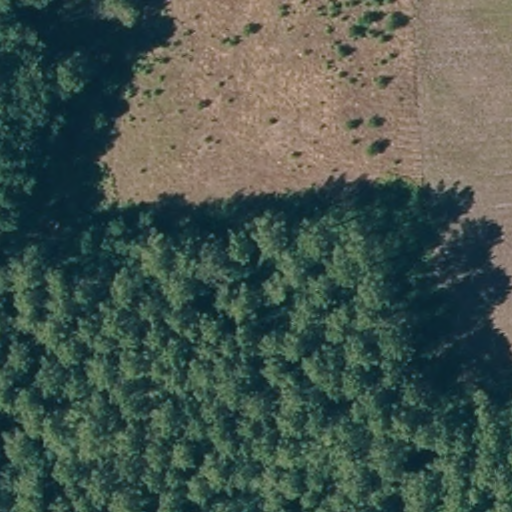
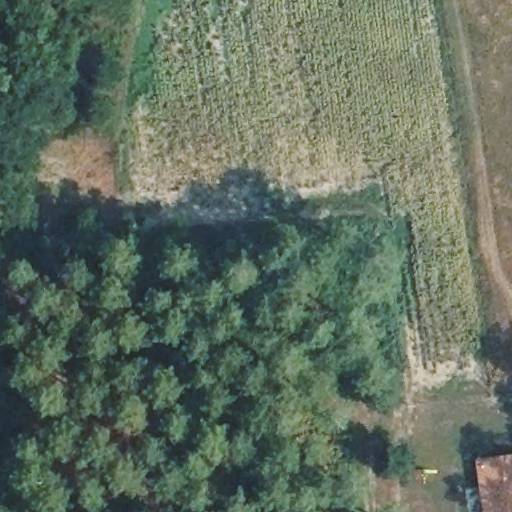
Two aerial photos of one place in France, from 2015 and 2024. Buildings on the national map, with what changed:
new [(512,453),(512,512),(481,512),(476,458),(512,453)]

